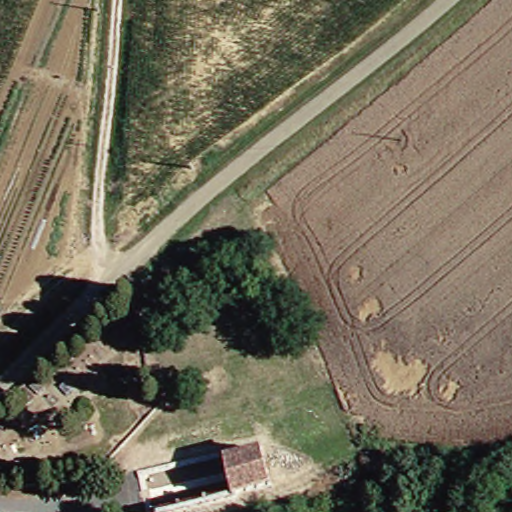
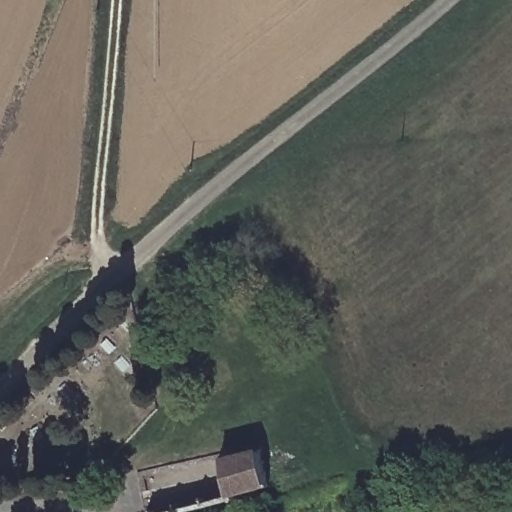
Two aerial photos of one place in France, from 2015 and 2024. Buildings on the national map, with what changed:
unchanged [(222,455),(263,445),(272,490),(230,498),(222,455)]

